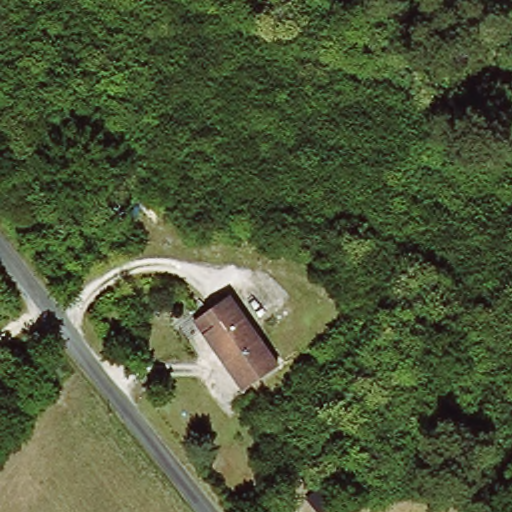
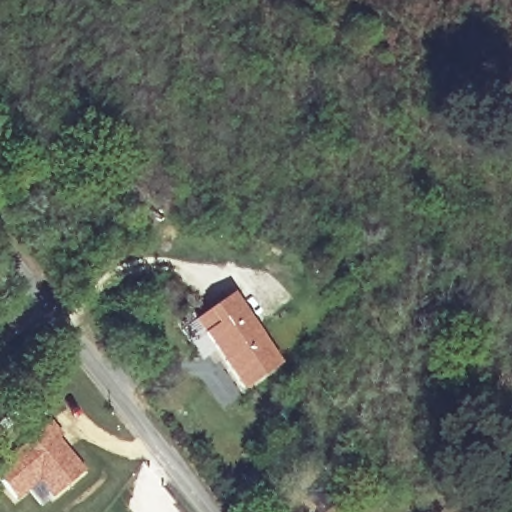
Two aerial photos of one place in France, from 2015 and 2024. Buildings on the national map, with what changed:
unchanged [(247,390),(195,322),(230,295),(282,363),(247,390)]
new [(62,435),(60,437),(85,470),(51,498),(37,483),(16,501),(0,484),(0,460),(49,420),(62,435)]

